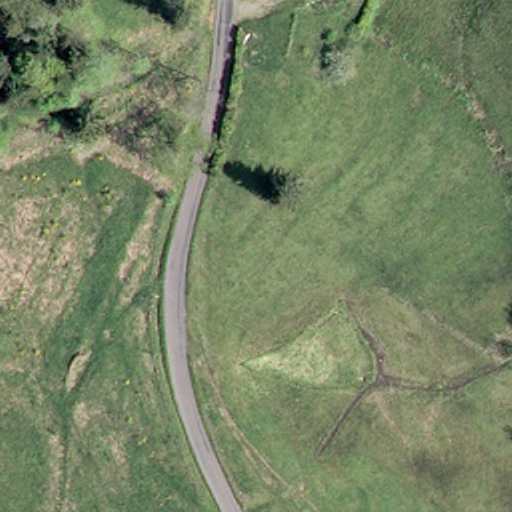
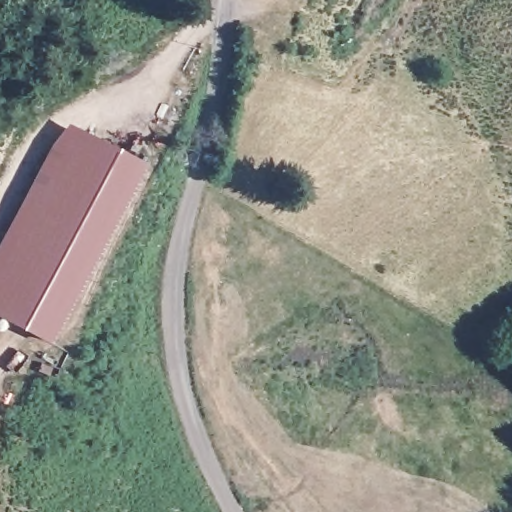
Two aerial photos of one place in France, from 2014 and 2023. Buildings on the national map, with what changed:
new [(145,164),(47,344),(0,318),(0,243),(53,141),(68,124),(145,164)]

